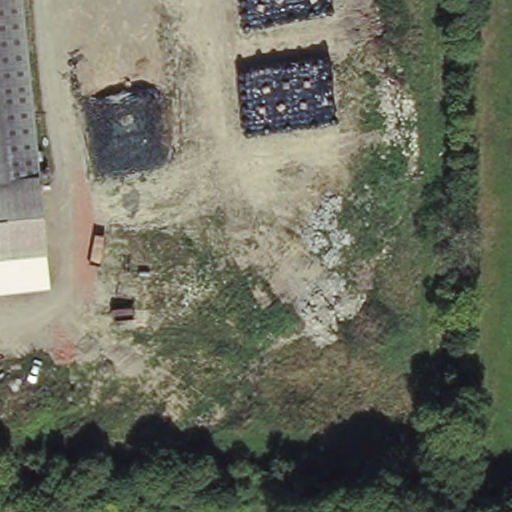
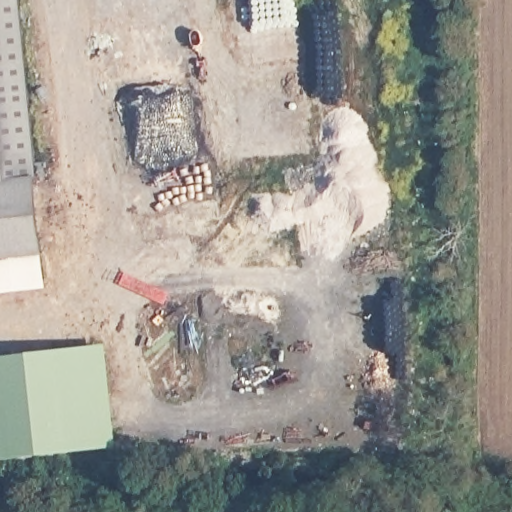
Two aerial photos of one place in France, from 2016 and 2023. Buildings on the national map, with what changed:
unchanged [(39,175),(46,254),(47,294),(0,298),(0,0),(22,0),(39,175)]
new [(108,343),(119,447),(0,460),(0,356),(108,343)]

